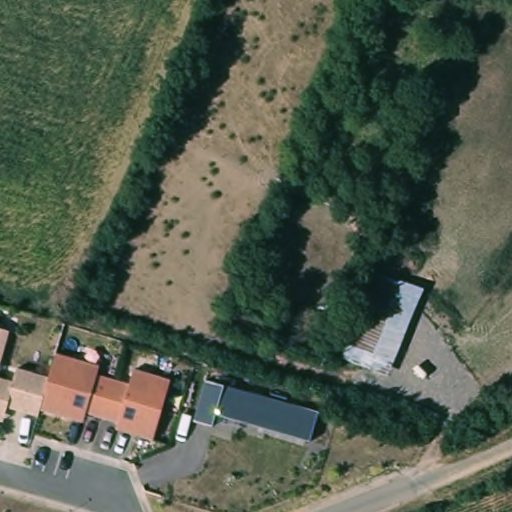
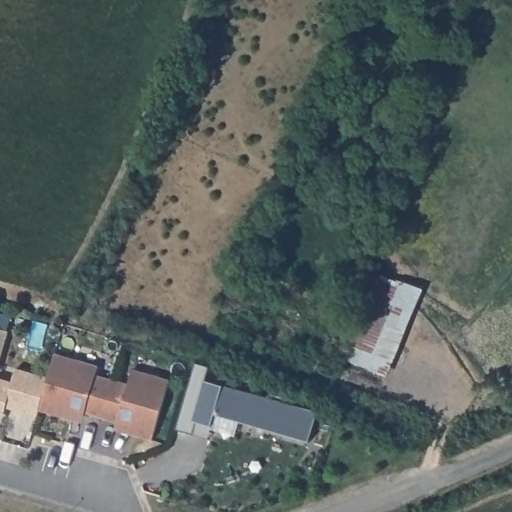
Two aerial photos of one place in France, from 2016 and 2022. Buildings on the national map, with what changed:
unchanged [(411,284),(380,357),(350,343),(381,272),(411,284)]
unchanged [(0,350),(0,327),(6,328),(0,350)]
unchanged [(16,368),(50,373),(56,352),(100,366),(97,375),(129,380),(132,368),(170,378),(156,439),(116,428),(119,418),(87,412),(84,422),(4,407),(2,421),(0,420),(0,376),(12,377),(16,368)]
unchanged [(318,412),(309,442),(217,412),(212,426),(195,422),(205,382),(318,412)]

